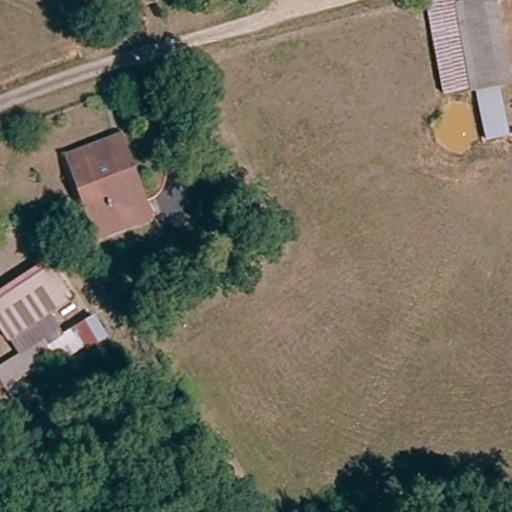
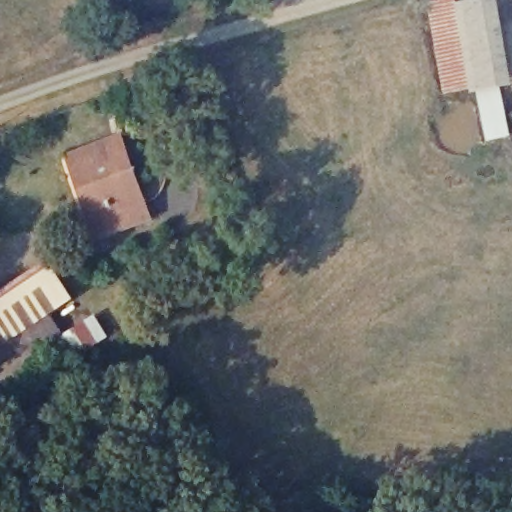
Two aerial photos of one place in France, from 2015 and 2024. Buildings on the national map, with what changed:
unchanged [(425,0),(455,0),(455,3),(471,0),(497,0),(511,88),(472,94),(469,91),(443,96),(425,0)]
unchanged [(129,140),(155,218),(134,228),(127,208),(136,203),(120,161),(124,160),(116,144),(129,140)]
unchanged [(103,239),(71,162),(116,144),(124,160),(120,161),(136,203),(127,208),(134,228),(103,239)]
unchanged [(81,302),(16,342),(0,314),(0,307),(61,266),(81,302)]
unchanged [(67,367),(63,362),(14,386),(1,369),(53,342),(54,345),(101,317),(119,343),(67,367)]

